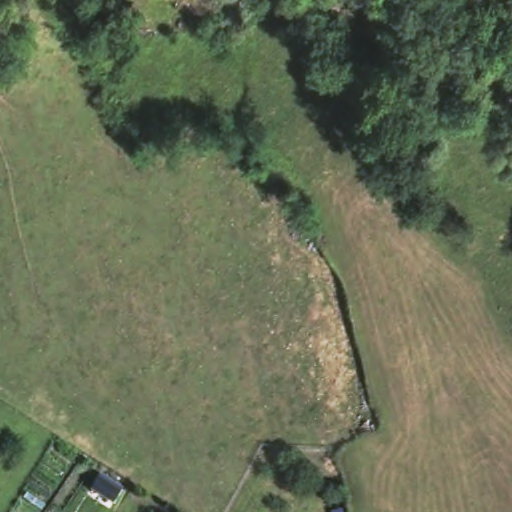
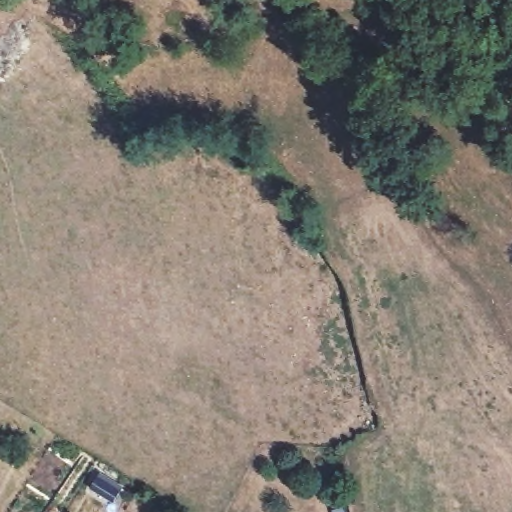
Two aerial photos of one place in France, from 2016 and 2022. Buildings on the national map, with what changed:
unchanged [(95,471),(118,485),(110,499),(86,485),(95,471)]

